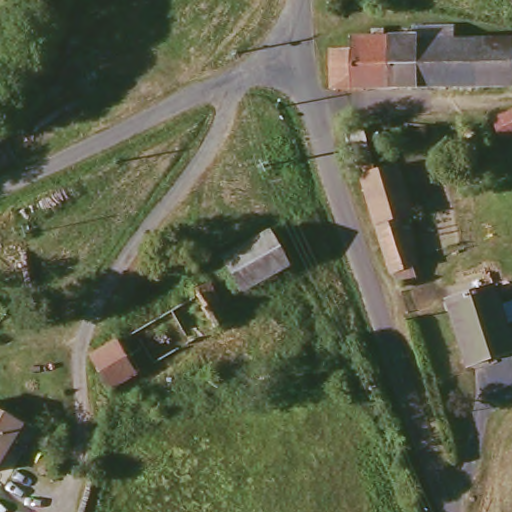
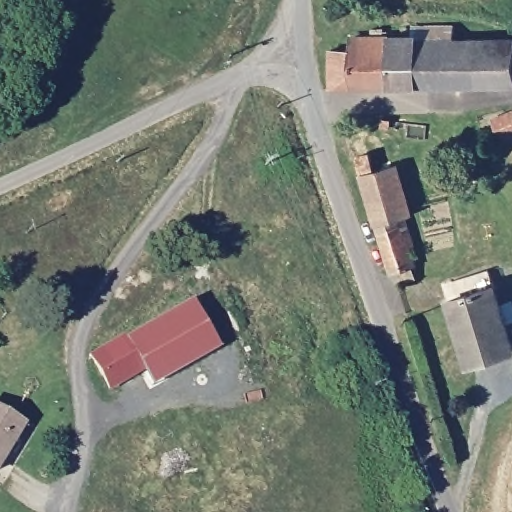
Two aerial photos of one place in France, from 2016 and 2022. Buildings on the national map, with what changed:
unchanged [(421,88),(380,88),(380,30),(380,19),(393,21),(393,32),(419,32),(421,88)]
unchanged [(467,88),(421,88),(419,32),(420,21),(467,24),(467,38),(467,88)]
unchanged [(380,88),(332,87),(331,44),(357,45),(359,29),(380,30),(380,88)]
unchanged [(467,88),(467,38),(512,38),(512,88),(467,88)]
unchanged [(260,127),(247,126),(246,114),(262,117),(260,127)]
unchanged [(495,125),(510,121),(512,120),(512,136),(499,140),(495,125)]
unchanged [(376,227),(355,154),(371,152),(376,170),(406,164),(422,215),(417,216),(376,227)]
unchanged [(415,278),(417,288),(402,292),(399,283),(393,285),(376,227),(417,216),(425,247),(419,249),(427,275),(415,278)]
unchanged [(243,291),(233,272),(230,260),(282,237),(295,267),(243,291)]
unchanged [(432,270),(426,250),(461,237),(467,257),(432,270)]
unchanged [(452,306),(495,287),(512,327),(512,353),(477,369),(452,306)]
new [(190,293),(217,338),(145,380),(140,373),(120,339),(190,293)]
unchanged [(140,373),(110,393),(88,356),(120,339),(140,373)]
unchanged [(0,409),(27,425),(0,469),(0,409)]

